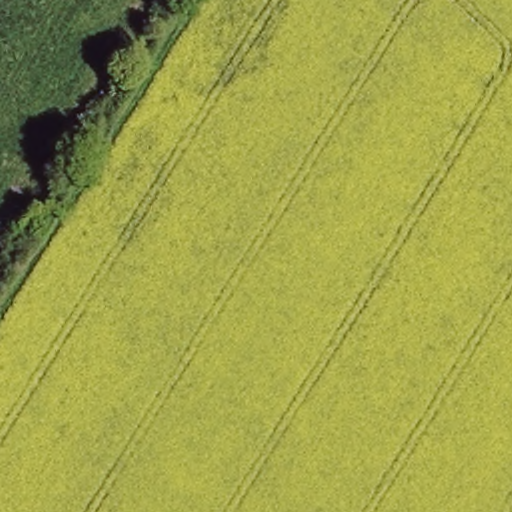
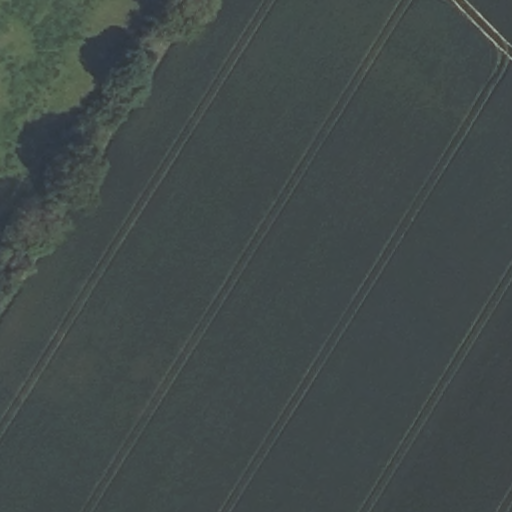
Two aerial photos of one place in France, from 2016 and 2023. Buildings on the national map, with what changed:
[]

